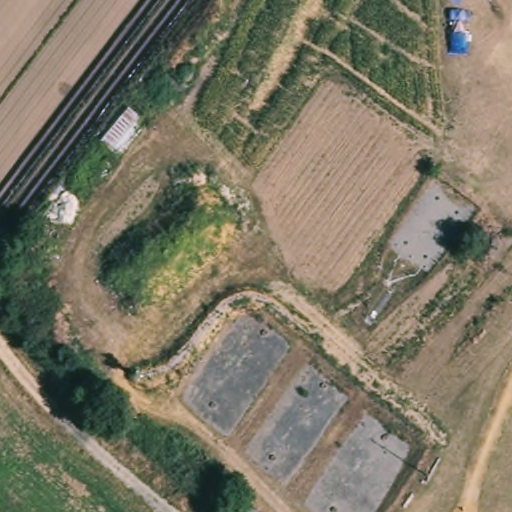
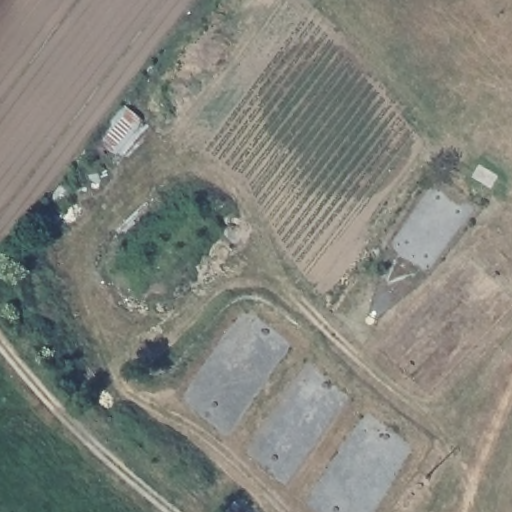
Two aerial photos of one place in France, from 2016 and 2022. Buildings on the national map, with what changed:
[]

